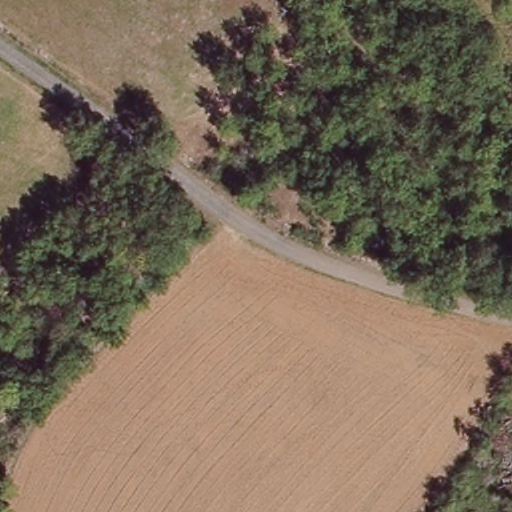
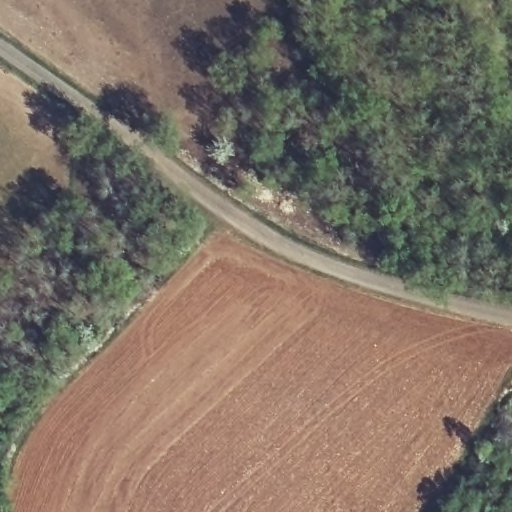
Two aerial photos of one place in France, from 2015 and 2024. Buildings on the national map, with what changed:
[]

